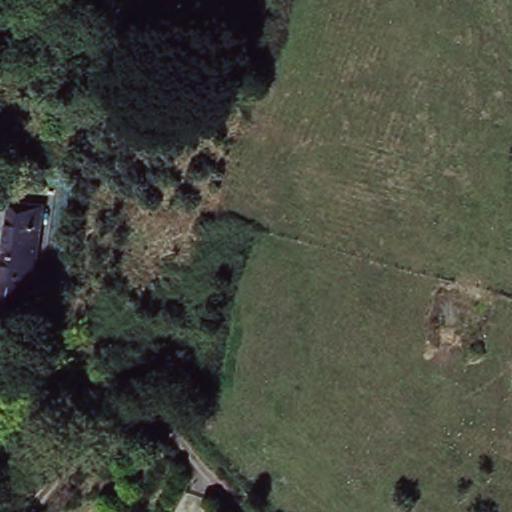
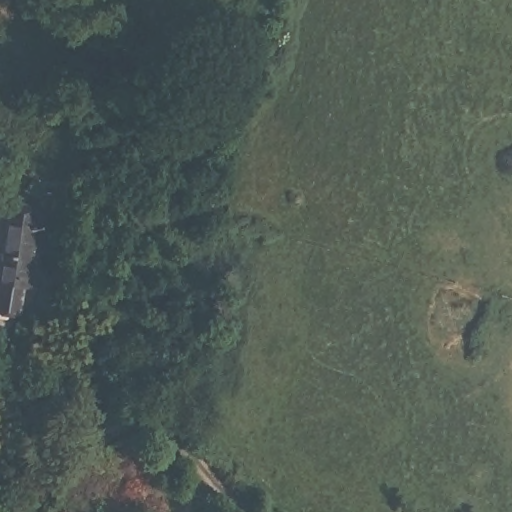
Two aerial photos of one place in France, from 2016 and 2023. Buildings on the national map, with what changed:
unchanged [(15,207),(40,211),(29,282),(21,282),(16,318),(0,316),(0,242),(4,220),(12,221),(15,207)]

